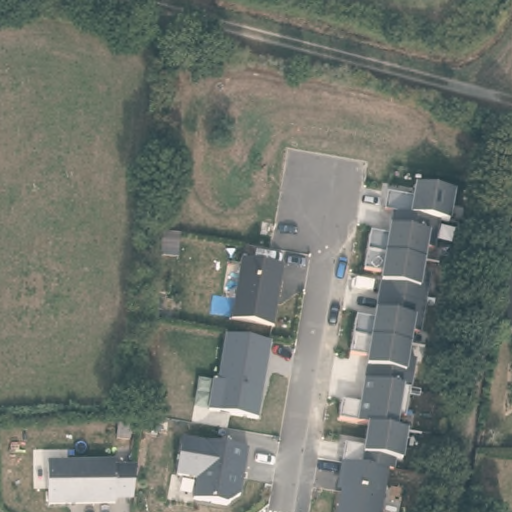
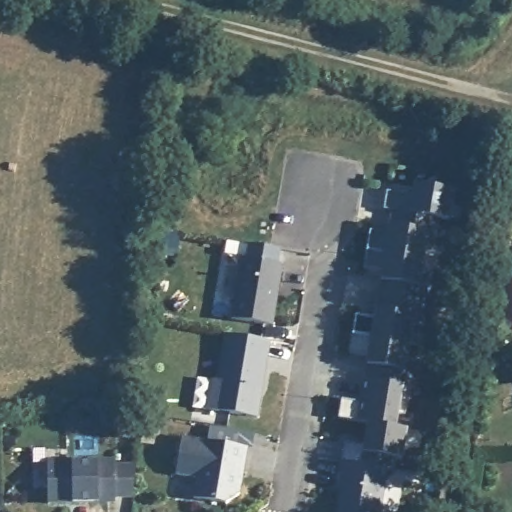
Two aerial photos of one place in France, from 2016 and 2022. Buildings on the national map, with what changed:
unchanged [(346,444),(363,447),(367,423),(340,418),(343,400),(360,402),(367,356),(350,353),(357,315),(375,317),(381,273),(364,270),(371,231),(388,233),(392,209),(385,207),(389,191),(411,194),(412,184),(455,192),(449,221),(414,214),(412,230),(430,233),(417,303),(403,300),(401,314),(417,316),(406,372),(394,370),(390,384),(412,388),(406,415),(398,414),(396,429),(408,432),(402,461),(395,459),(395,472),(388,471),(341,462),(346,444)]
unchanged [(285,265),(272,329),(231,320),(242,255),(285,265)]
unchanged [(258,416),(209,409),(212,380),(220,381),(226,337),(270,344),(258,416)]
unchanged [(182,437),(247,450),(240,494),(225,506),(194,500),(197,480),(176,475),(182,437)]
unchanged [(115,460),(115,464),(136,463),(132,499),(116,499),(116,506),(49,507),(49,461),(115,460)]
unchanged [(381,512),(339,512),(342,491),(336,490),(341,462),(388,471),(381,512)]

